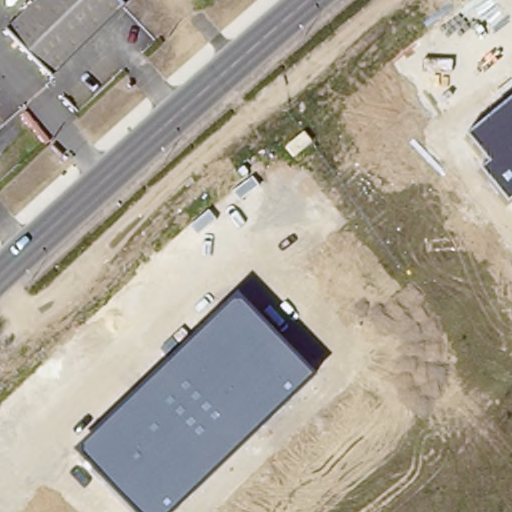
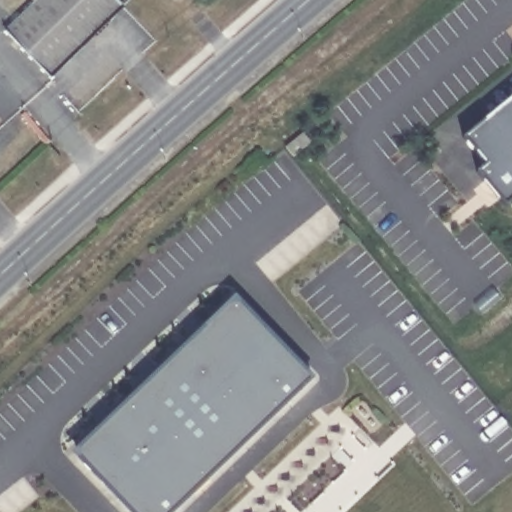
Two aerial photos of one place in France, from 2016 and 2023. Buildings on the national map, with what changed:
unchanged [(122,9),(50,81),(4,32),(19,17),(32,5),(28,0),(112,0),(122,9)]
unchanged [(506,206),(477,172),(487,166),(464,139),(512,100),(512,201),(506,206)]
unchanged [(160,348),(172,338),(178,346),(235,296),(315,380),(177,512),(127,512),(71,453),(168,357),(160,348)]

